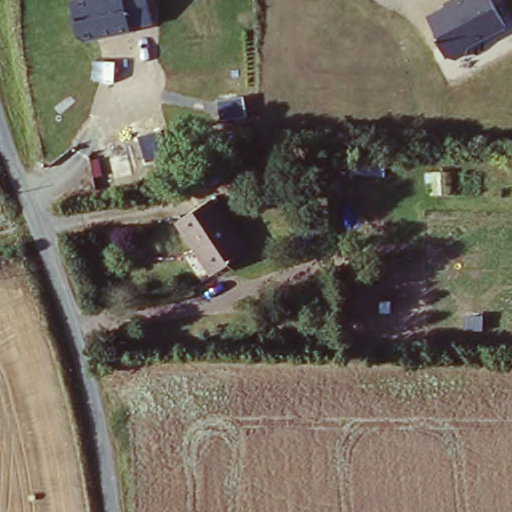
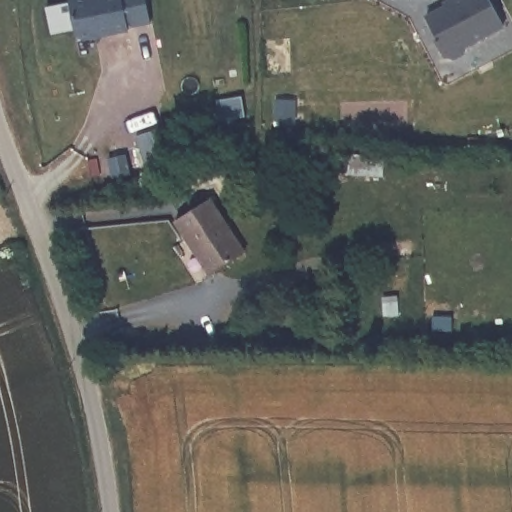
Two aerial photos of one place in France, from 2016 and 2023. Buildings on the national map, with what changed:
unchanged [(78,34),(71,0),(124,0),(129,29),(83,39),(78,34)]
unchanged [(445,5),(444,0),(493,0),(506,25),(464,47),(463,55),(454,60),(443,56),(424,15),(445,5)]
unchanged [(198,252),(177,217),(212,197),(248,251),(218,268),(211,272),(198,252)]

